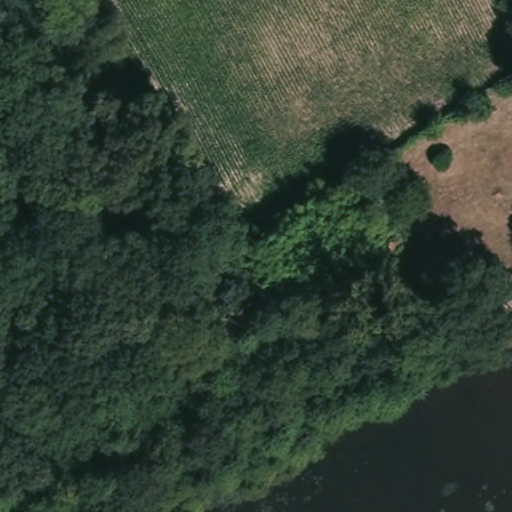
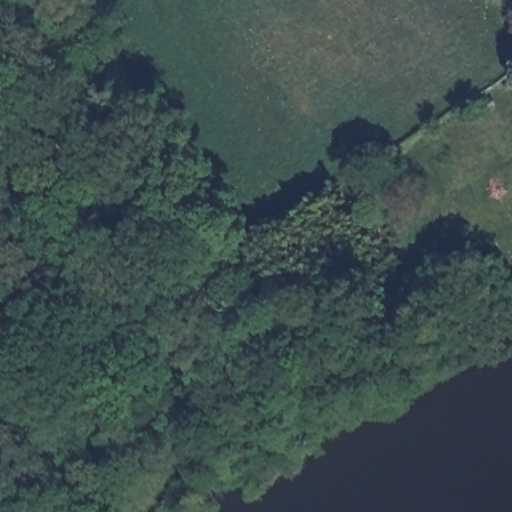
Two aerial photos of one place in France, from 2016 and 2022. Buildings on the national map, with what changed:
[]

